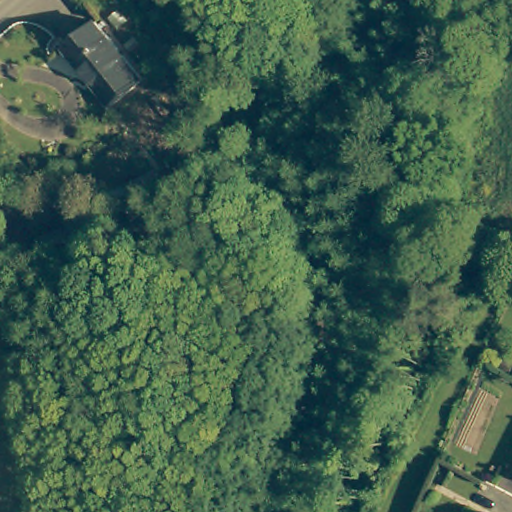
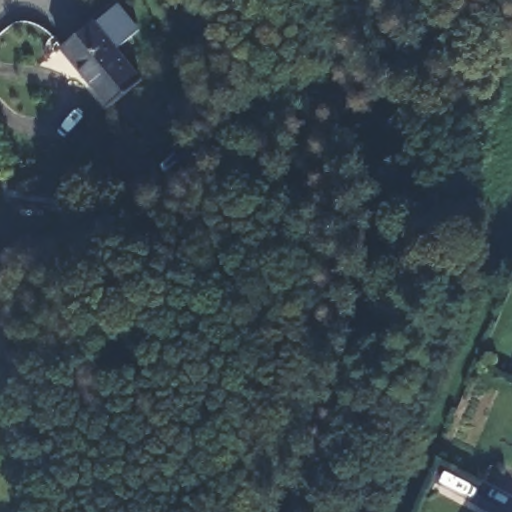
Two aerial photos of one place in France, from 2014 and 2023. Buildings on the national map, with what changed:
unchanged [(106,101),(60,53),(92,25),(136,74),(106,101)]
unchanged [(32,245),(86,225),(87,229),(100,223),(109,245),(41,270),(34,251),(32,245)]
unchanged [(492,511),(493,512),(492,512),(492,511)]

